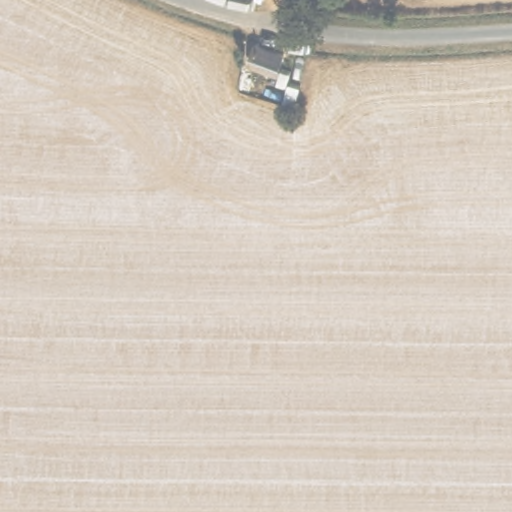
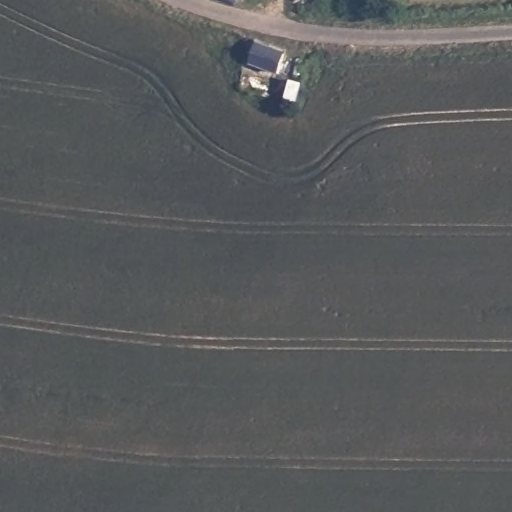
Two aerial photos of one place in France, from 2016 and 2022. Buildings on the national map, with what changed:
unchanged [(288,54),(280,71),(251,60),(256,43),(288,54)]

